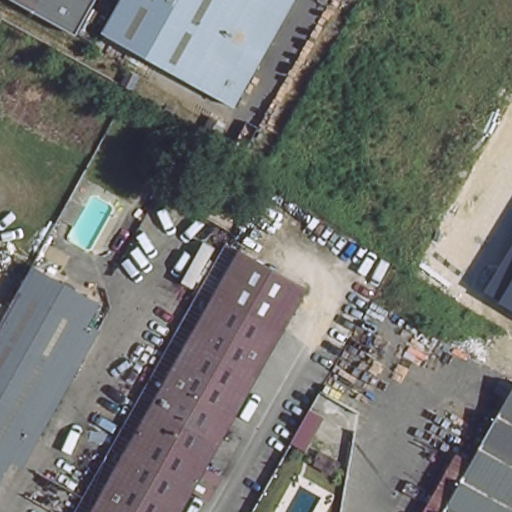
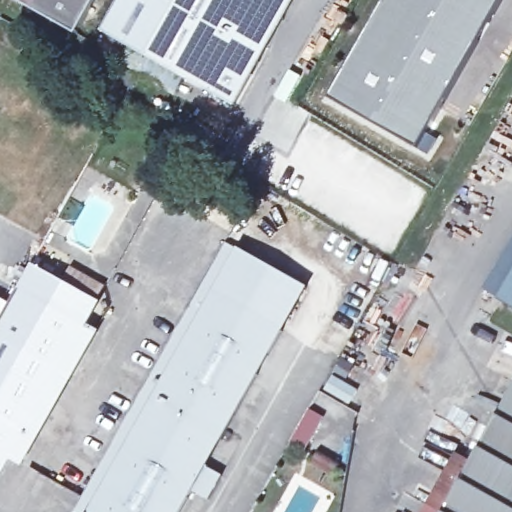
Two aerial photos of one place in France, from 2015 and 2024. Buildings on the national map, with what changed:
unchanged [(9,0),(95,0),(75,34),(9,0)]
unchanged [(104,31),(121,0),(293,0),(235,104),(104,31)]
new [(330,100),(386,0),(502,0),(418,147),(330,100)]
unchanged [(512,246),(512,310),(483,292),(512,246)]
unchanged [(314,299),(290,339),(209,292),(234,251),(314,299)]
unchanged [(42,265),(110,302),(91,331),(26,292),(42,265)]
unchanged [(91,331),(65,375),(0,335),(26,292),(91,331)]
unchanged [(218,501),(200,491),(187,512),(77,512),(209,292),(290,339),(209,475),(226,485),(218,501)]
unchanged [(0,335),(65,375),(0,479),(0,336),(0,335)]
unchanged [(512,390),(512,512),(443,512),(512,390)]
new [(297,398),(311,407),(292,439),(278,430),(297,398)]

